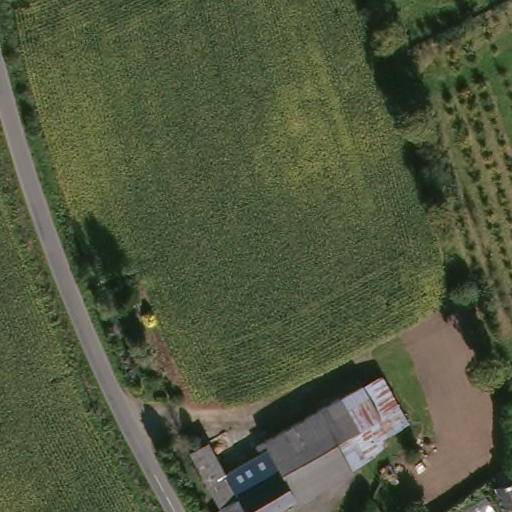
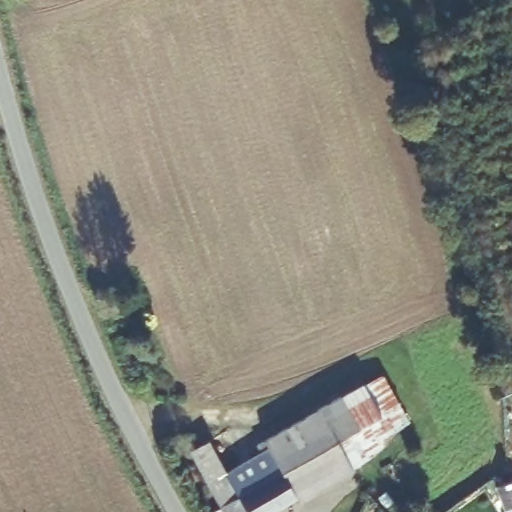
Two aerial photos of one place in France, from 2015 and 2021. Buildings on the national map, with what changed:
unchanged [(377,445),(381,450),(351,470),(297,501),(268,452),(261,455),(257,448),(363,389),(365,389),(381,381),(407,427),(377,445)]
unchanged [(209,444),(227,477),(261,455),(268,452),(297,501),(278,512),(222,512),(191,455),(209,444)]
unchanged [(512,469),(512,506),(506,508),(497,484),(499,483),(496,476),(502,466),(510,467),(512,469)]
unchanged [(351,512),(336,512),(340,505),(351,512)]

